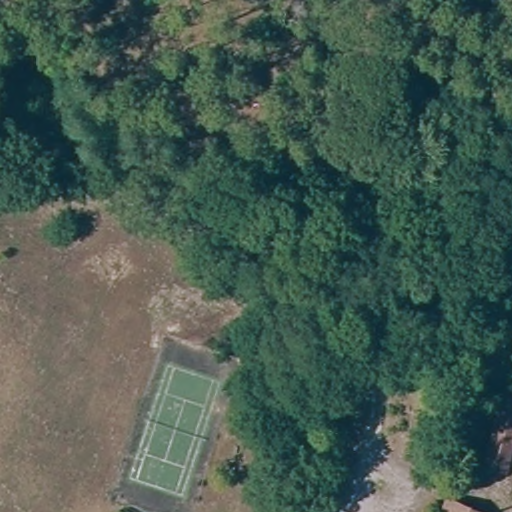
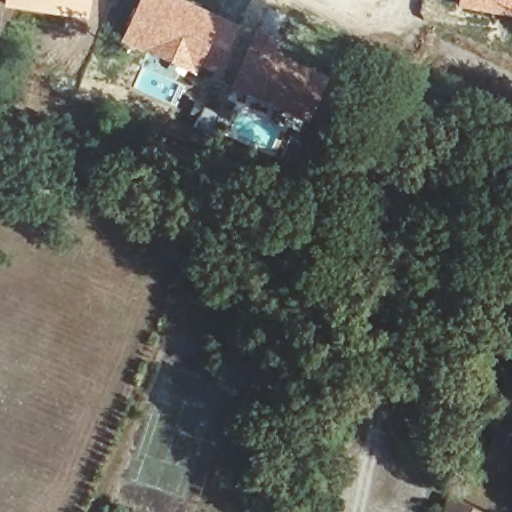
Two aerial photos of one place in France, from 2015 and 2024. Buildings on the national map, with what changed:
new [(3,0),(90,0),(86,20),(2,6),(3,0)]
new [(136,0),(184,0),(240,26),(217,79),(200,73),(197,75),(118,41),(136,0)]
new [(457,0),(512,0),(512,18),(456,7),(457,0)]
unchanged [(276,383),(252,375),(262,347),(286,355),(276,383)]
unchanged [(507,471),(488,465),(507,393),(512,394),(512,454),(507,471)]
unchanged [(460,508),(458,512),(441,512),(446,501),(460,508)]
unchanged [(458,512),(460,508),(469,512),(458,512)]

